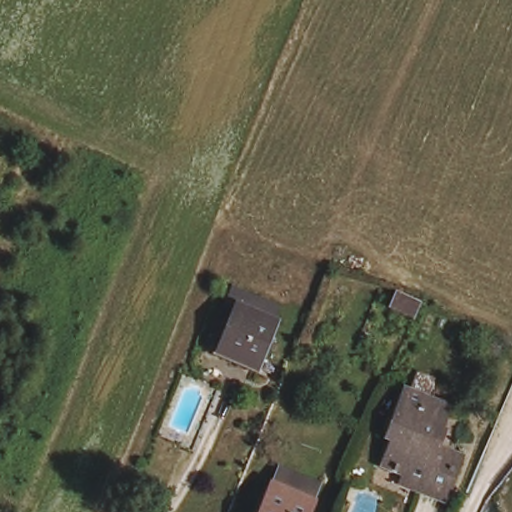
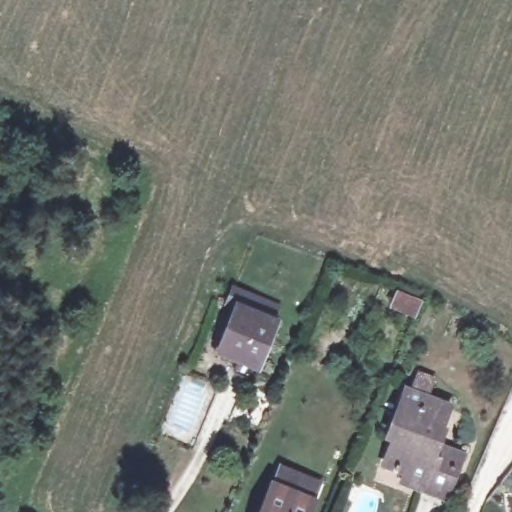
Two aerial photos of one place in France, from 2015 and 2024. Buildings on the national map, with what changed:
unchanged [(400,304),(405,292),(427,302),(422,313),(400,304)]
unchanged [(273,321),(255,366),(220,352),(239,307),(273,321)]
unchanged [(411,479),(387,469),(405,423),(395,418),(407,392),(414,396),(420,377),(435,384),(428,402),(451,412),(435,450),(462,462),(445,503),(424,494),(407,487),(411,479)]
unchanged [(262,512),(280,469),(318,485),(307,512),(262,512)]

